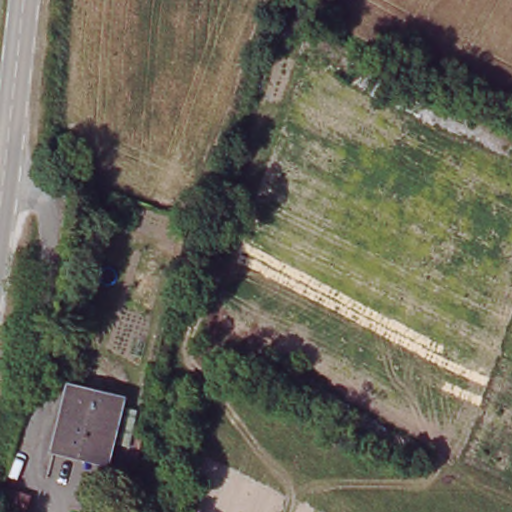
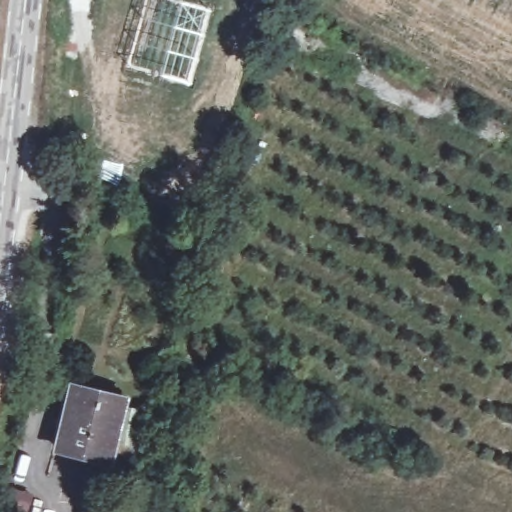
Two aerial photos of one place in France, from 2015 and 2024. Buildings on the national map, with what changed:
new [(210,9),(193,87),(125,69),(147,0),(174,0),(210,9)]
unchanged [(110,459),(60,447),(75,387),(125,400),(110,459)]

